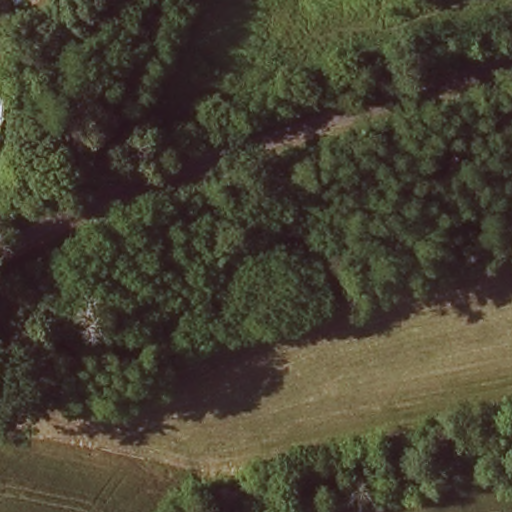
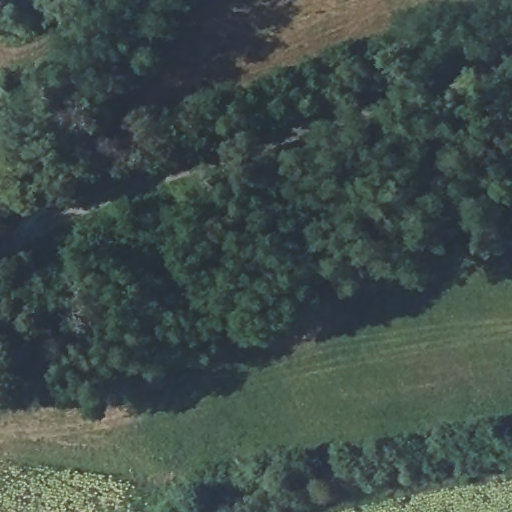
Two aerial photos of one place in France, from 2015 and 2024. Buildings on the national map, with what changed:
[]

